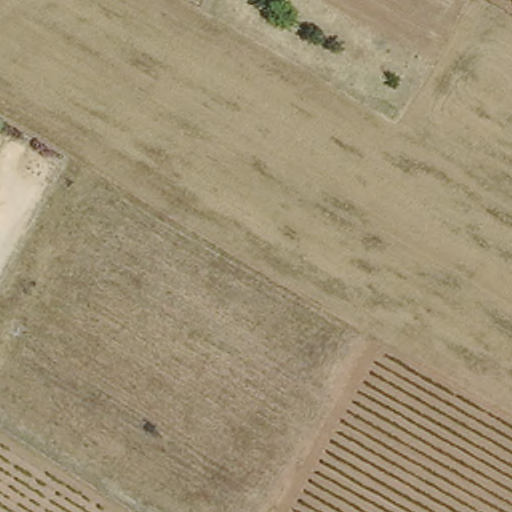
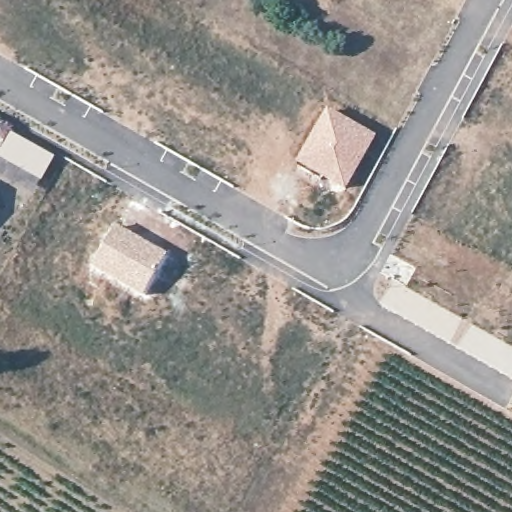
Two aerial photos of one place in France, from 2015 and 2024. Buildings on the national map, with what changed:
new [(330,108),(378,135),(345,190),(297,164),(330,108)]
new [(10,132),(56,156),(42,183),(0,158),(0,153),(10,132)]
new [(117,224),(169,253),(144,297),(92,268),(117,224)]

